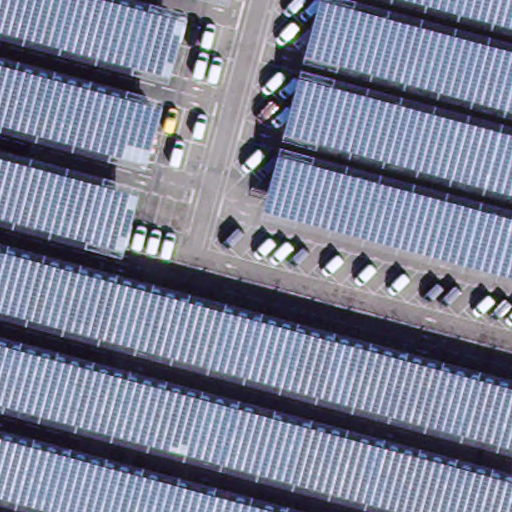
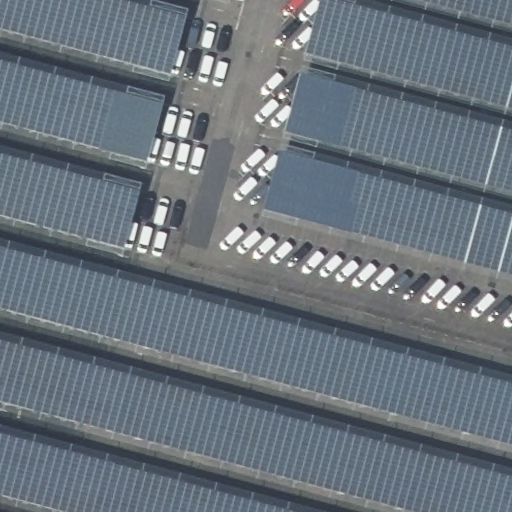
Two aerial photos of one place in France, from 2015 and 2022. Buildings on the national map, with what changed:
[]

